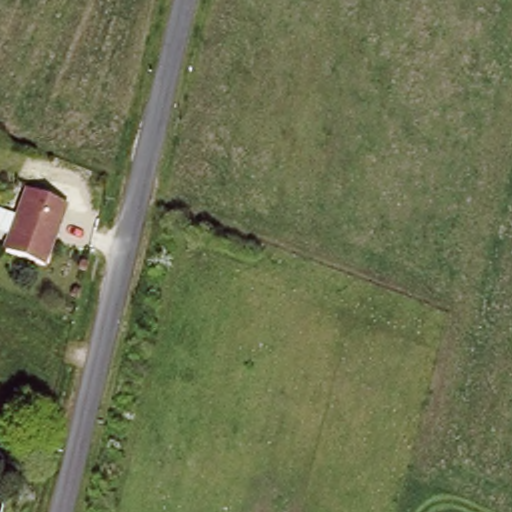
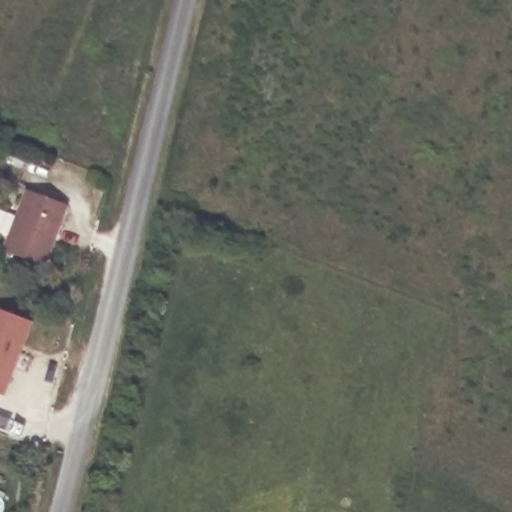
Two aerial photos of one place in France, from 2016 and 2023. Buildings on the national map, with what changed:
unchanged [(27,185),(67,201),(44,262),(2,246),(27,185)]
new [(32,322),(5,396),(0,394),(0,310),(32,322)]

